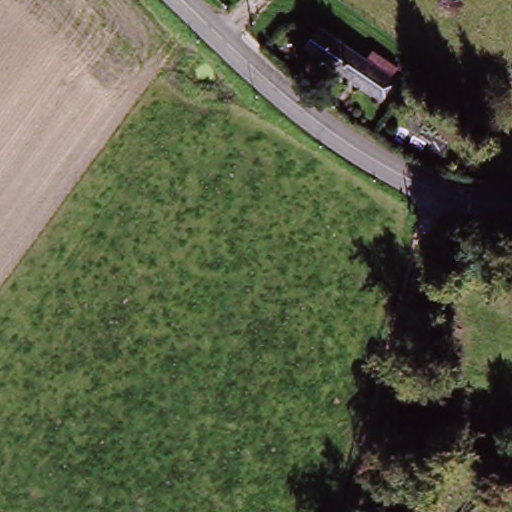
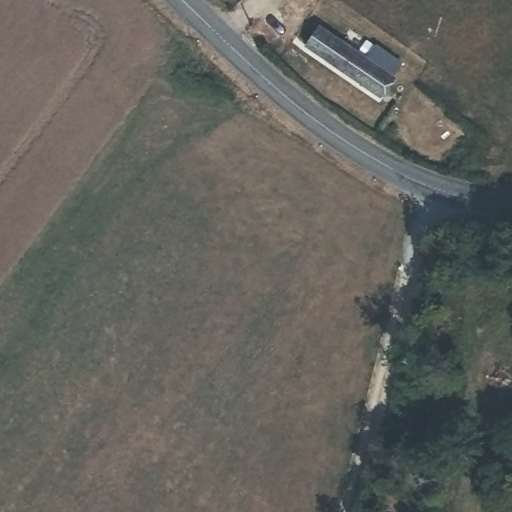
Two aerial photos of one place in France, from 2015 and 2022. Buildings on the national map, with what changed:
unchanged [(368,64),(372,58),(390,70),(375,94),(301,48),(314,30),(368,64)]

